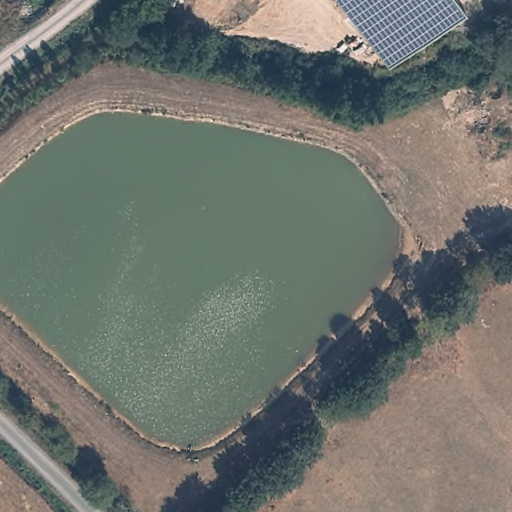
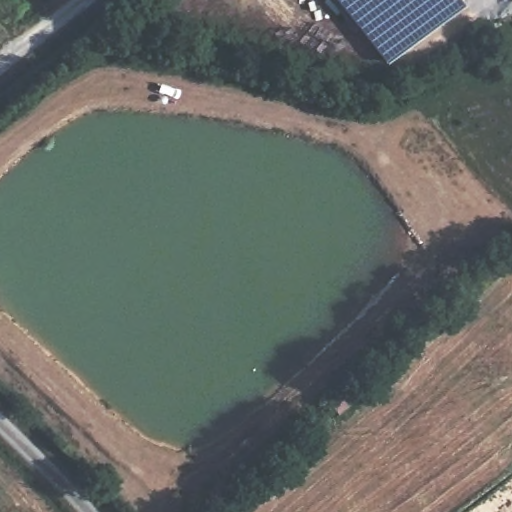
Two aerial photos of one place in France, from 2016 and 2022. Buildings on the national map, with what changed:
unchanged [(386,62),(337,0),(461,0),(463,2),(386,62)]

